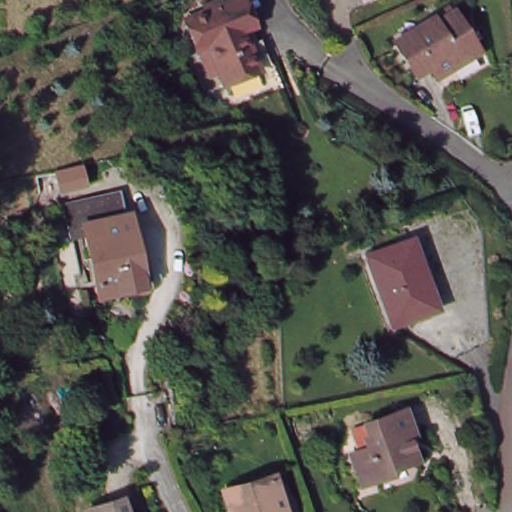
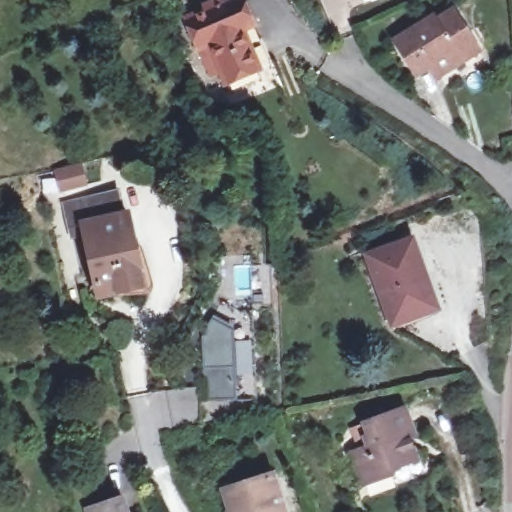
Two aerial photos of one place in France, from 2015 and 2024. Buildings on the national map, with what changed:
unchanged [(269,58),(253,65),(221,78),(204,40),(195,42),(183,15),(218,0),(246,0),(255,22),(251,24),(256,37),(260,35),(269,58)]
unchanged [(449,63),(429,76),(425,69),(423,65),(414,70),(394,40),(430,16),(432,18),(451,7),(471,40),(475,47),(449,63)]
unchanged [(115,196),(118,220),(126,219),(136,286),(91,293),(82,225),(71,226),(69,206),(115,196)]
unchanged [(434,306),(398,320),(371,258),(413,240),(427,272),(422,275),(434,306)]
new [(199,337),(216,302),(234,311),(248,311),(254,398),(203,401),(199,337)]
unchanged [(408,466),(379,477),(366,442),(376,440),(373,430),(379,427),(377,420),(418,404),(424,422),(417,425),(426,451),(411,457),(408,466)]
unchanged [(225,503),(223,492),(234,487),(232,483),(261,472),(268,490),(274,487),(280,512),(219,512),(225,503)]
unchanged [(83,512),(116,498),(122,512),(83,512)]

